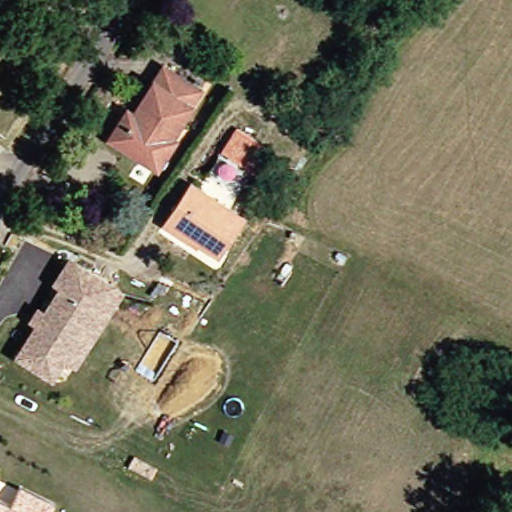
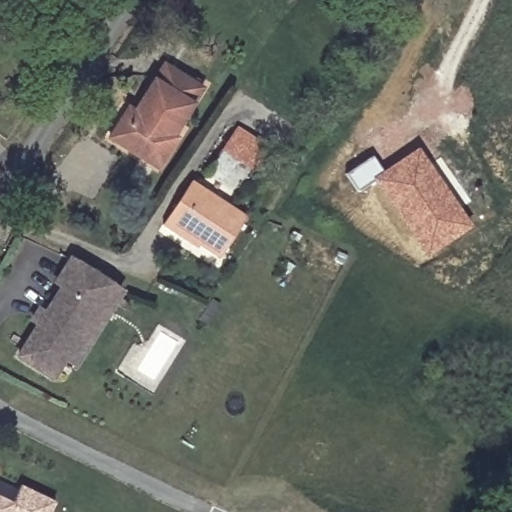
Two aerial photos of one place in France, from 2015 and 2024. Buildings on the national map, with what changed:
unchanged [(156,172),(144,164),(108,138),(118,124),(129,108),(138,111),(168,66),(204,92),(171,138),(177,143),(156,172)]
new [(255,173),(226,152),(241,131),(270,153),(255,173)]
demolished [(240,184),(211,163),(226,141),(255,163),(240,184)]
new [(427,256),(375,181),(359,193),(346,174),(374,155),(383,170),(418,148),(472,227),(427,256)]
unchanged [(179,235),(165,224),(196,184),(248,224),(222,259),(203,245),(199,250),(179,235)]
unchanged [(70,358),(60,376),(25,356),(44,323),(38,319),(44,308),(50,311),(65,284),(59,279),(74,256),(126,286),(112,310),(81,364),(70,358)]
unchanged [(32,508),(30,512),(0,512),(0,495),(14,502),(22,484),(57,499),(52,512),(42,512),(32,508)]

